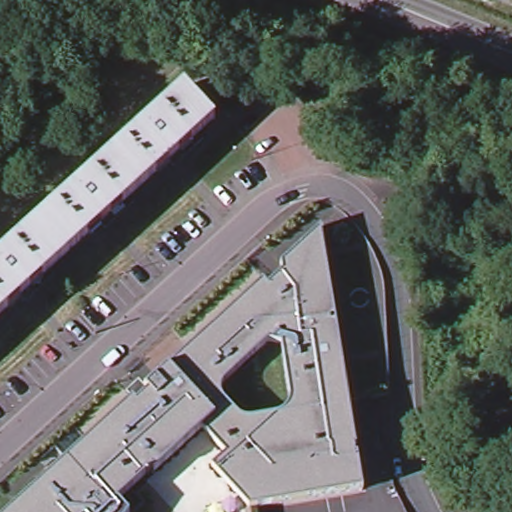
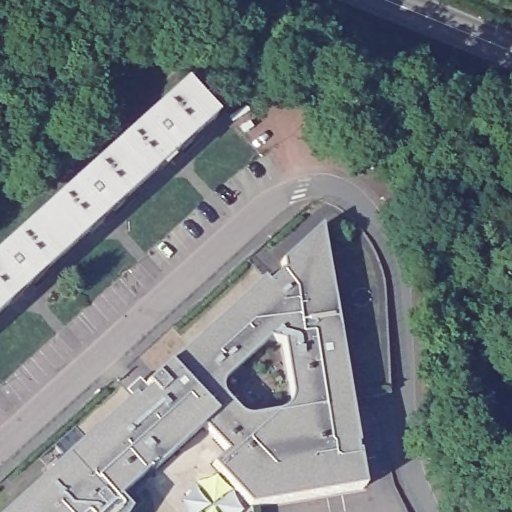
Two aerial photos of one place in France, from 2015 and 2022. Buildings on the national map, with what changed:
unchanged [(210,128),(0,316),(0,259),(182,97),(210,128)]
unchanged [(262,278),(267,282),(282,270),(282,263),(322,226),(365,489),(250,508),(213,466),(227,454),(200,429),(116,500),(129,510),(127,512),(7,512),(169,366),(262,278)]

